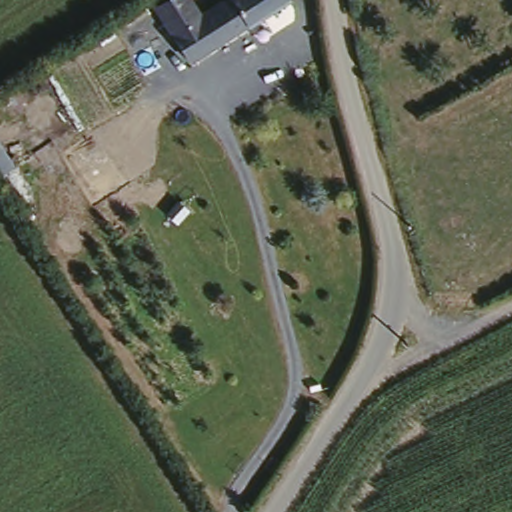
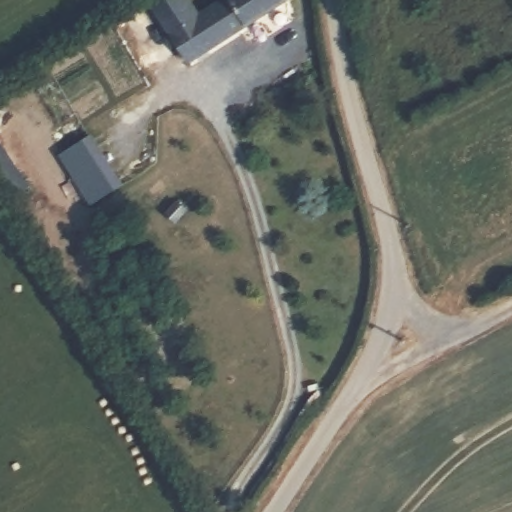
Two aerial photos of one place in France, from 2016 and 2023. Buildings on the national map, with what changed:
unchanged [(191,0),(199,12),(217,0),(277,0),(189,57),(153,3),(158,0),(191,0)]
new [(58,155),(93,134),(124,184),(90,205),(58,155)]

